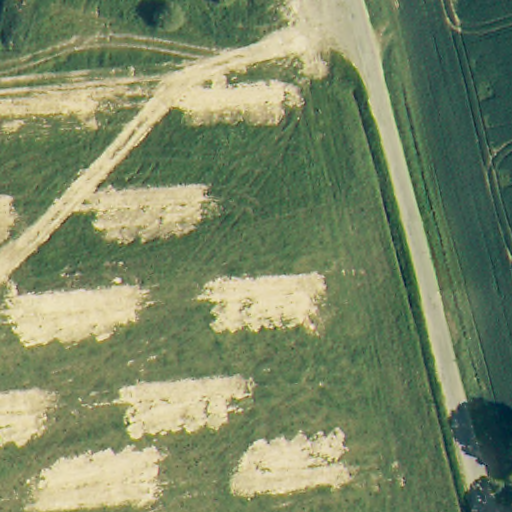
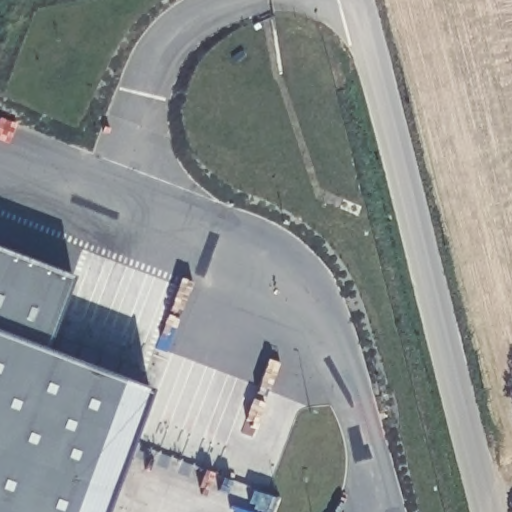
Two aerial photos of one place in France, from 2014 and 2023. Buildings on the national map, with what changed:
new [(73,277),(47,353),(149,390),(102,512),(0,512),(0,249),(73,277)]

